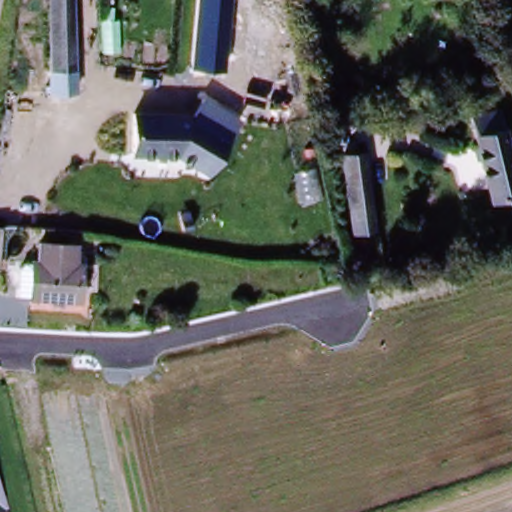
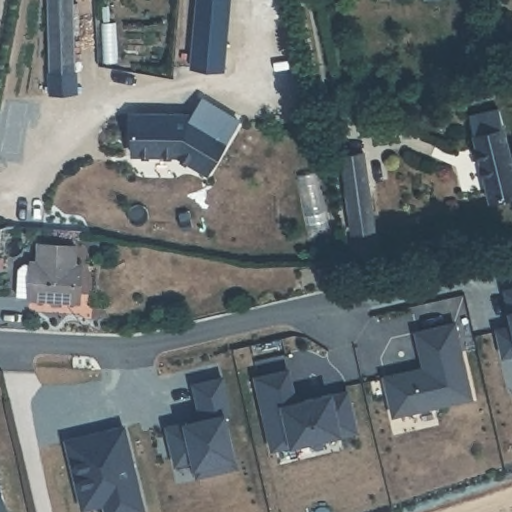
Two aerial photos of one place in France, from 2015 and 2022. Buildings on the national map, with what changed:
unchanged [(39,75),(51,75),(51,72),(49,0),(76,0),(78,72),(79,94),(52,94),(40,94),(39,75)]
unchanged [(190,67),(196,0),(229,0),(224,71),(190,67)]
unchanged [(428,1),(428,0),(437,0),(428,1)]
unchanged [(512,172),(512,198),(488,204),(468,115),(463,95),(474,92),(479,112),(497,108),(512,172)]
unchanged [(244,121),(209,173),(182,157),(130,156),(130,114),(190,114),(203,95),(244,121)]
unchanged [(349,235),(339,157),(363,154),(373,231),(349,235)]
unchanged [(0,229),(5,229),(1,270),(0,270),(0,229)]
unchanged [(69,258),(74,258),(73,298),(19,297),(19,293),(20,260),(21,254),(28,254),(29,238),(69,241),(69,258)]
new [(509,292),(512,291),(512,308),(509,292)]
new [(509,314),(512,313),(512,325),(509,314)]
new [(419,336),(457,327),(474,400),(396,418),(388,380),(420,373),(427,371),(419,336)]
new [(506,357),(500,330),(512,328),(512,356),(506,357)]
new [(289,373),(297,405),(333,397),(333,398),(349,395),(358,434),(341,438),(341,436),(277,451),(269,413),(266,413),(259,380),(289,373)]
new [(204,420),(197,386),(224,379),(233,415),(227,416),(239,467),(199,476),(196,460),(178,464),(170,428),(189,423),(204,420)]
new [(109,512),(107,504),(85,510),(72,452),(69,442),(96,436),(126,429),(146,512),(109,512)]
unchanged [(1,512),(0,512),(0,490),(5,508),(0,509),(1,512)]

